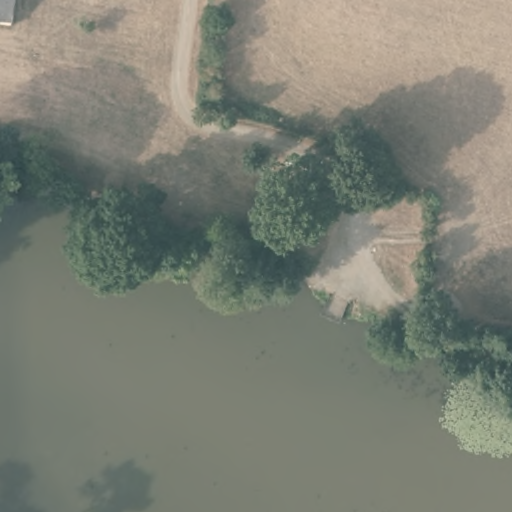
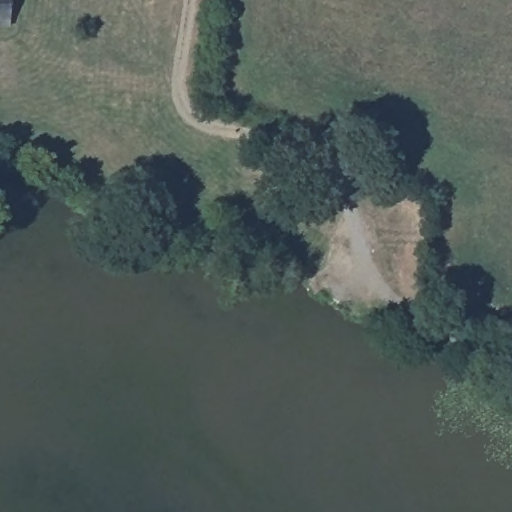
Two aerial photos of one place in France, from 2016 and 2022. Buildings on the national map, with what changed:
unchanged [(0,0),(15,0),(14,24),(0,22),(0,0)]

